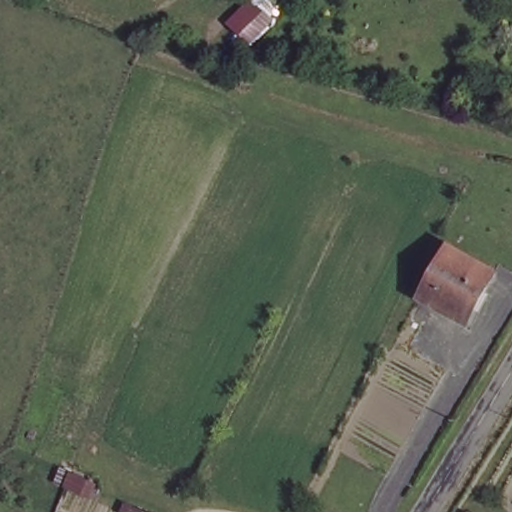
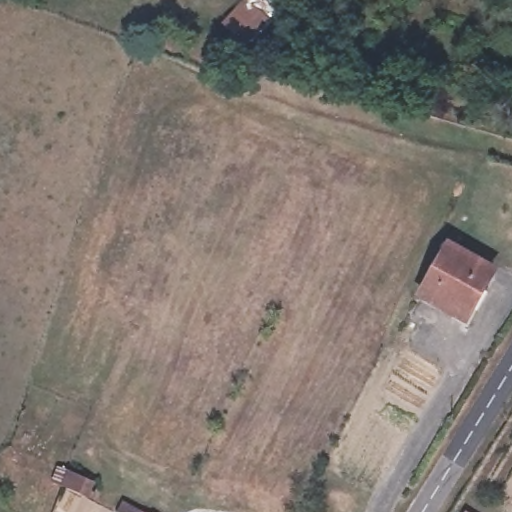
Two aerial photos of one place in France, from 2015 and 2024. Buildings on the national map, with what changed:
unchanged [(242,0),(277,0),(278,1),(268,16),(273,21),(247,46),(222,23),(242,0)]
unchanged [(497,274),(468,326),(422,301),(448,247),(497,274)]
unchanged [(141,512),(116,512),(121,501),(141,512)]
unchanged [(463,512),(461,512),(462,511),(463,512)]

